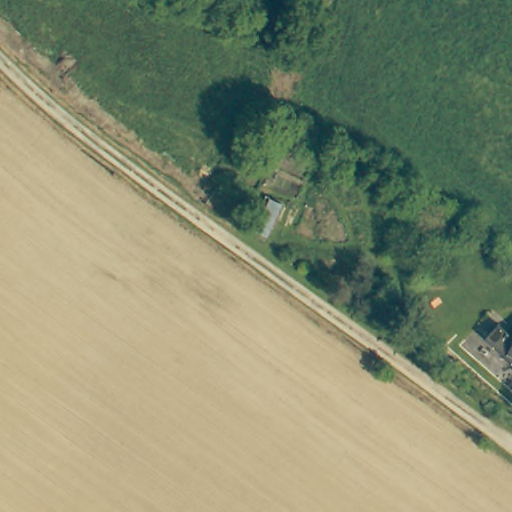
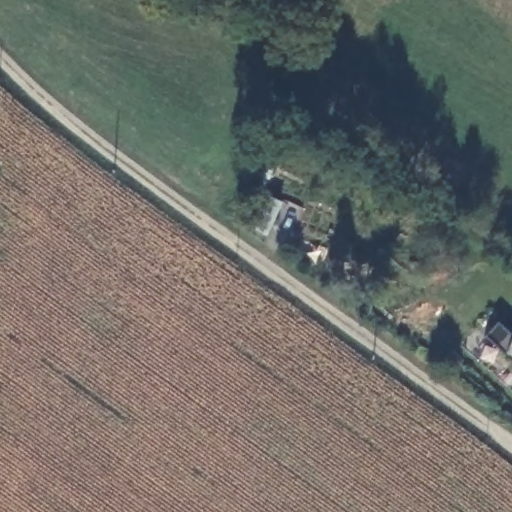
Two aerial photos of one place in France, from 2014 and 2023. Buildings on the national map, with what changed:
unchanged [(503,325),(512,333),(512,358),(494,342),(489,338),(502,322),(503,325)]

